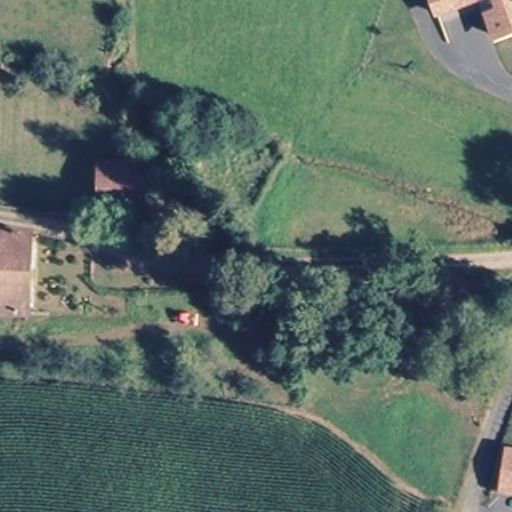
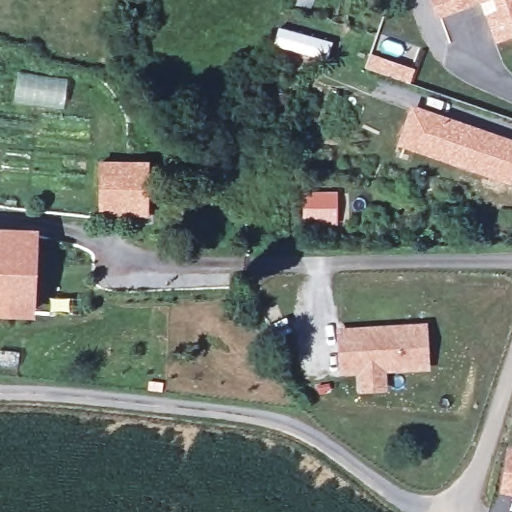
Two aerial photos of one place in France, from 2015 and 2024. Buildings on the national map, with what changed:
new [(435,20),(429,0),(489,0),(435,20)]
new [(512,38),(496,44),(483,15),(495,10),(492,0),(512,0),(512,38)]
demolished [(512,35),(510,35),(509,30),(495,33),(492,16),(505,15),(502,0),(512,0),(512,35)]
new [(397,145),(411,104),(512,139),(512,178),(509,185),(397,145)]
unchanged [(130,212),(105,211),(108,161),(132,162),(130,212)]
unchanged [(152,163),(151,214),(130,212),(132,162),(152,163)]
unchanged [(33,231),(33,310),(0,308),(0,230),(33,231)]
new [(425,323),(428,370),(386,372),(387,392),(359,394),(357,373),(338,375),(334,328),(425,323)]
unchanged [(509,448),(512,448),(512,495),(500,493),(509,448)]

